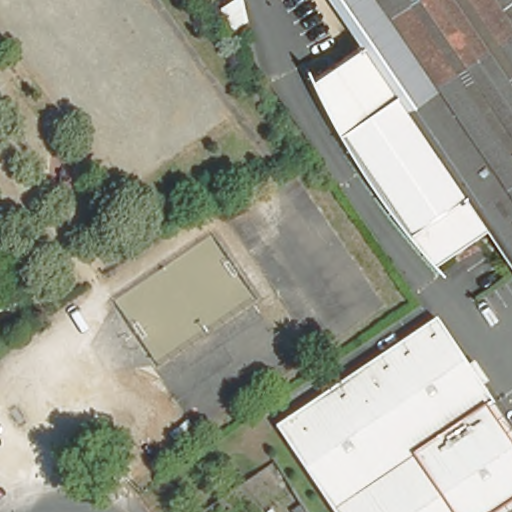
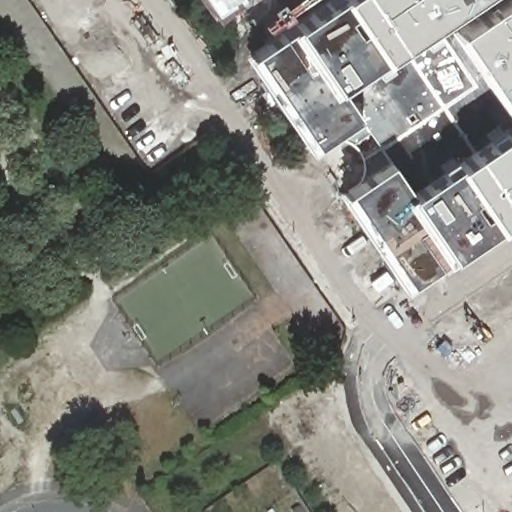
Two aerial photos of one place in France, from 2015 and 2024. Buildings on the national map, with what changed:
new [(215,18),(202,0),(239,0),(215,18)]
new [(295,25),(331,0),(512,0),(512,215),(495,226),(452,256),(405,287),(342,196),(386,165),(355,118),(309,151),(249,57),(295,25)]
demolished [(480,225),(427,261),(422,255),(403,233),(335,132),(306,80),(358,45),(327,0),(512,0),(512,273),(480,225)]
demolished [(492,405),(485,409),(512,449),(512,500),(495,512),(333,512),(276,426),(435,320),(492,405)]

